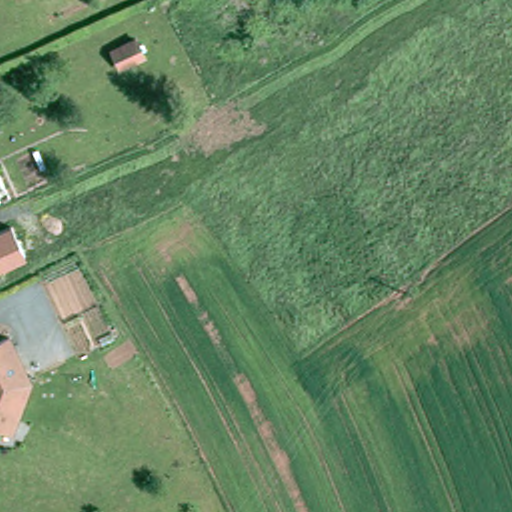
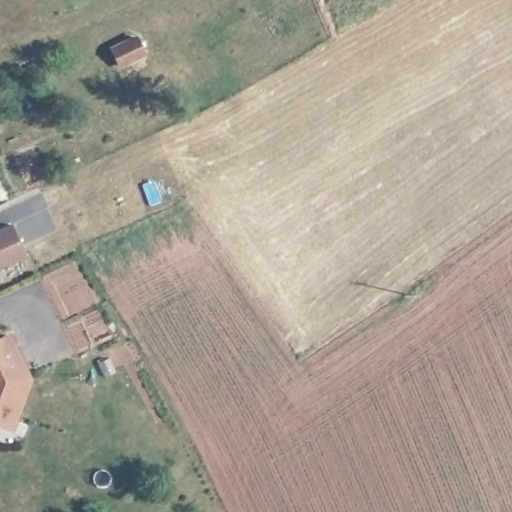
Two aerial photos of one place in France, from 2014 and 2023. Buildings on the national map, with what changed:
unchanged [(143,36),(119,48),(110,30),(133,19),(143,36)]
unchanged [(0,267),(0,228),(11,223),(26,255),(0,267)]
unchanged [(0,417),(0,343),(17,336),(38,379),(20,425),(0,417)]

